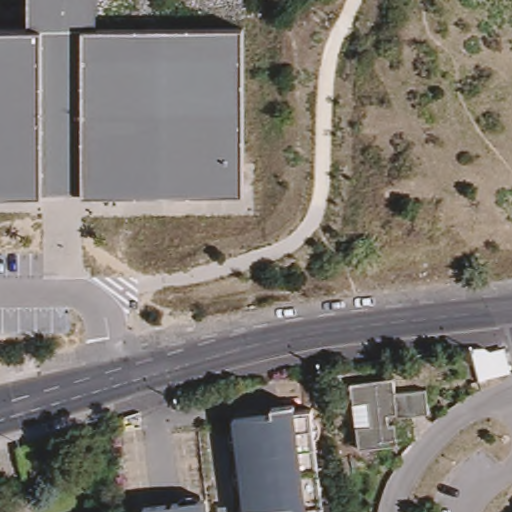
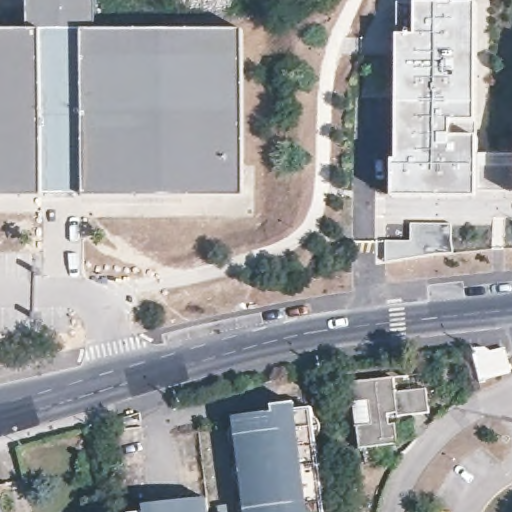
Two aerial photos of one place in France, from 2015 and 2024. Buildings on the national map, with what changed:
unchanged [(91,31),(24,32),(23,0),(91,0),(91,31)]
new [(417,4),(477,3),(475,122),(452,123),(451,137),(477,138),(477,155),(512,153),(512,188),(477,188),(477,197),(393,198),(392,161),(398,161),(398,36),(398,4),(417,4)]
unchanged [(91,31),(238,31),(239,197),(78,198),(78,194),(38,194),(38,198),(0,198),(0,32),(24,32),(91,31)]
new [(431,257),(388,262),(388,242),(414,243),(414,224),(455,226),(454,256),(431,257)]
unchanged [(429,415),(398,420),(398,417),(389,418),(390,428),(396,428),(399,444),(360,448),(352,385),(395,380),(397,396),(427,392),(429,415)]
unchanged [(245,512),(233,419),(270,413),(269,406),(296,402),(296,409),(312,407),(328,512),(245,512)]
unchanged [(142,413),(145,430),(125,433),(123,418),(142,413)]
unchanged [(202,495),(203,502),(205,512),(124,512),(123,507),(202,495)]
unchanged [(230,501),(231,512),(217,512),(216,503),(230,501)]

